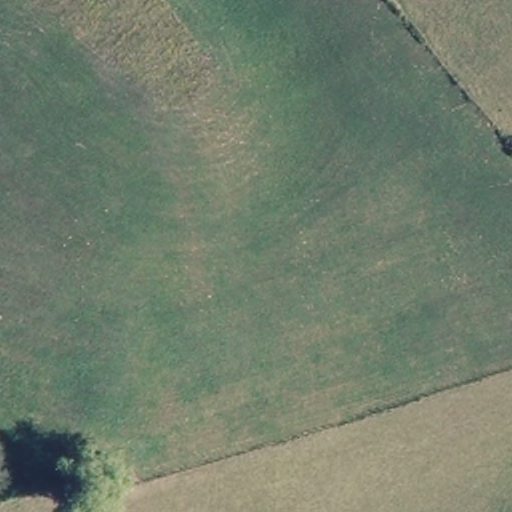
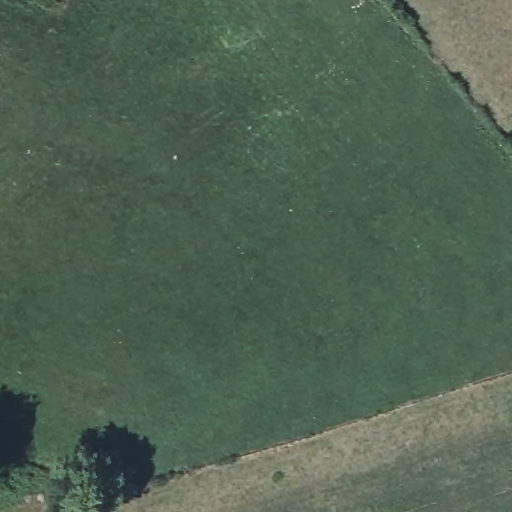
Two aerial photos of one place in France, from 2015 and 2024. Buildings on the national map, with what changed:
[]

